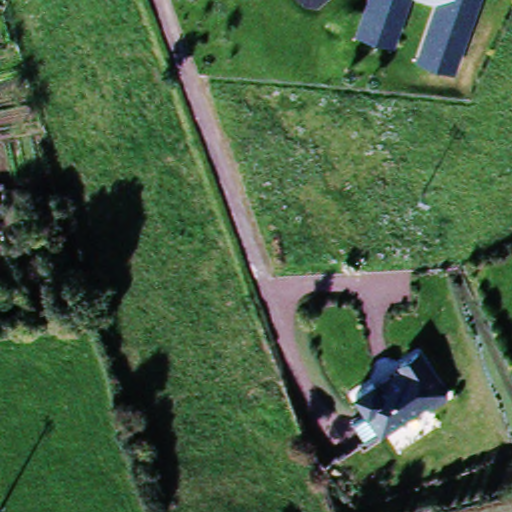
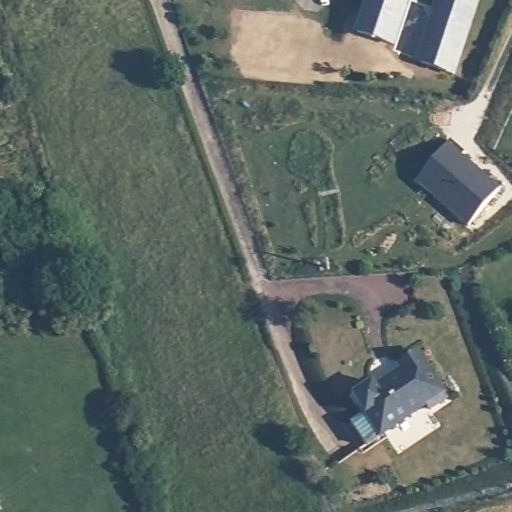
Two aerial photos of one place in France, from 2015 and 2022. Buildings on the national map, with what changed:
unchanged [(354,36),(366,0),(414,0),(397,50),(354,36)]
unchanged [(413,65),(433,5),(419,0),(485,0),(460,80),(413,65)]
new [(465,154),(460,157),(500,188),(467,227),(417,182),(451,144),(465,154)]
unchanged [(359,393),(374,379),(378,383),(400,362),(396,358),(413,342),(452,383),(434,398),(440,405),(417,427),(407,417),(391,433),(362,401),(357,395),(359,393)]

